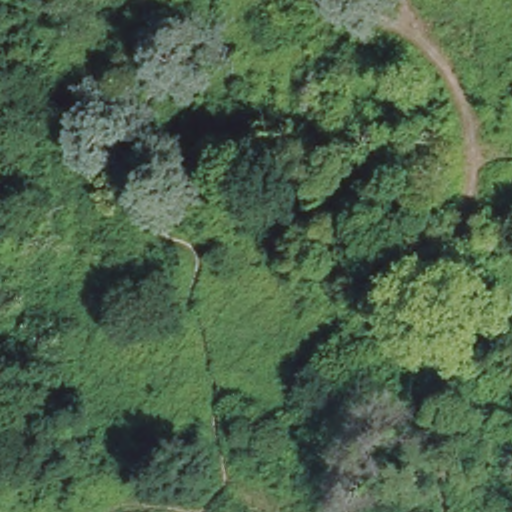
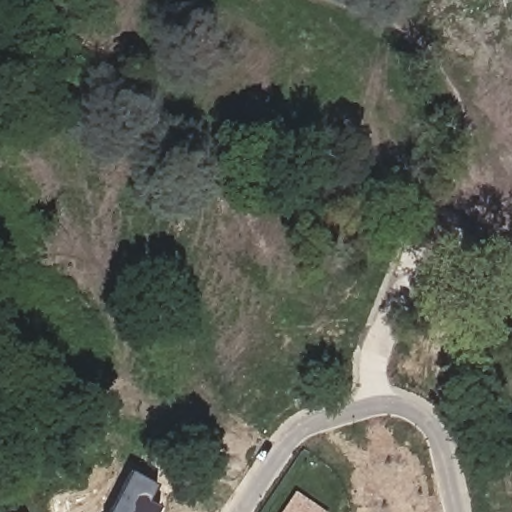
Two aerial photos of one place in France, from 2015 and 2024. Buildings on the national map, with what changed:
new [(156,489),(147,504),(159,510),(158,512),(110,512),(129,475),(156,489)]
new [(324,512),(282,512),(295,492),(324,512)]

